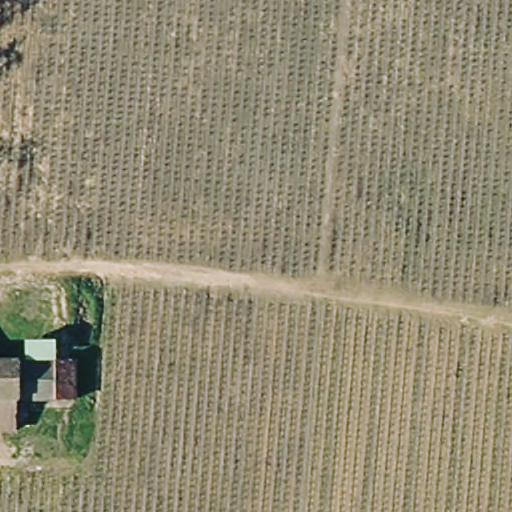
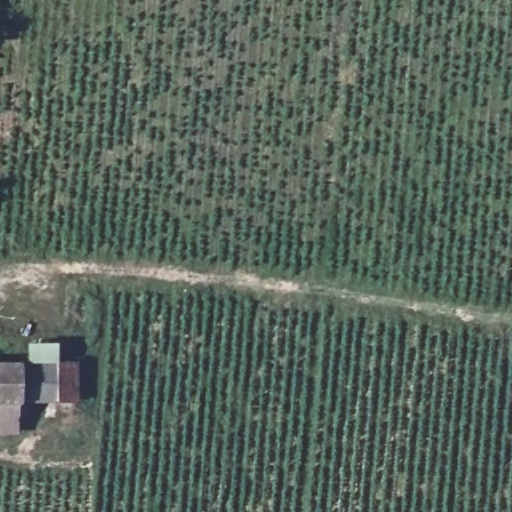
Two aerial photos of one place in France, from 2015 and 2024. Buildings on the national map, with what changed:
unchanged [(80,362),(78,400),(25,399),(0,398),(0,358),(80,362)]
unchanged [(25,399),(23,433),(0,432),(0,398),(25,399)]

